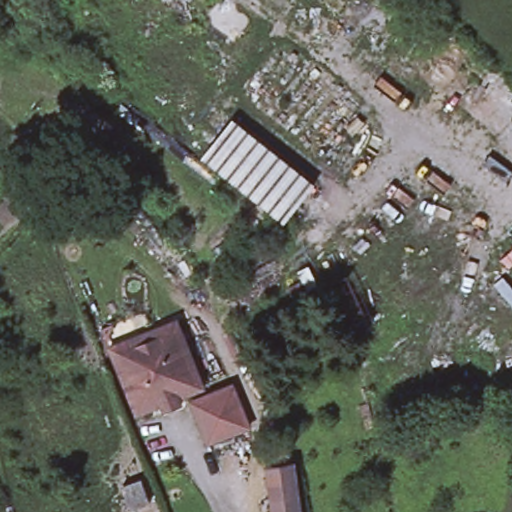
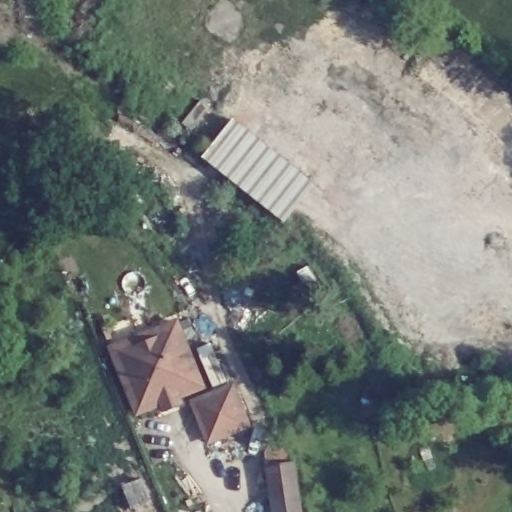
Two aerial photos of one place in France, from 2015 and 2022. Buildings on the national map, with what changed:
unchanged [(286,220),(202,158),(230,118),(315,186),(286,220)]
unchanged [(201,386),(137,412),(117,364),(111,348),(154,330),(175,321),(201,386)]
unchanged [(251,425),(208,442),(207,443),(189,400),(235,381),(251,425)]
unchanged [(304,512),(279,512),(270,467),(295,462),(304,512)]
unchanged [(149,501),(130,508),(121,485),(140,478),(149,501)]

